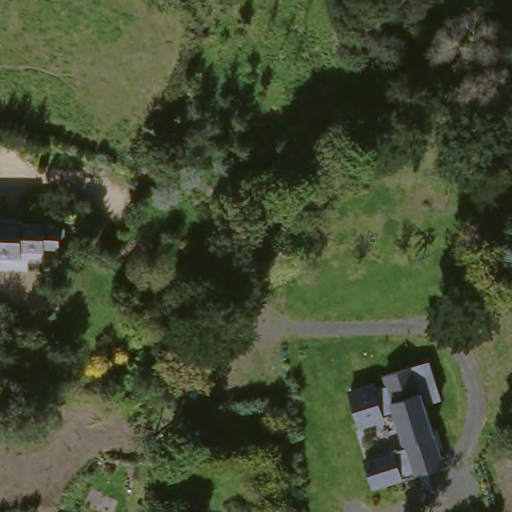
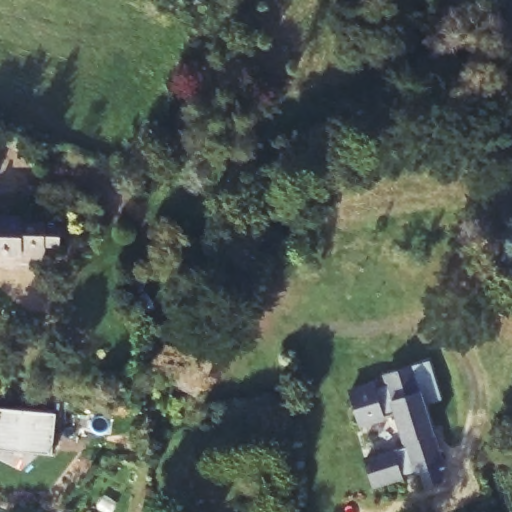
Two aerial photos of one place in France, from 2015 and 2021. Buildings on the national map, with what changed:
unchanged [(47,226),(63,227),(62,250),(46,249),(46,251),(26,251),(26,260),(0,260),(0,227),(47,228),(47,226)]
unchanged [(364,457),(399,446),(389,418),(358,426),(348,384),(434,361),(447,401),(433,406),(451,469),(450,468),(372,487),(364,457)]
new [(57,413),(53,451),(0,446),(0,406),(57,413)]

